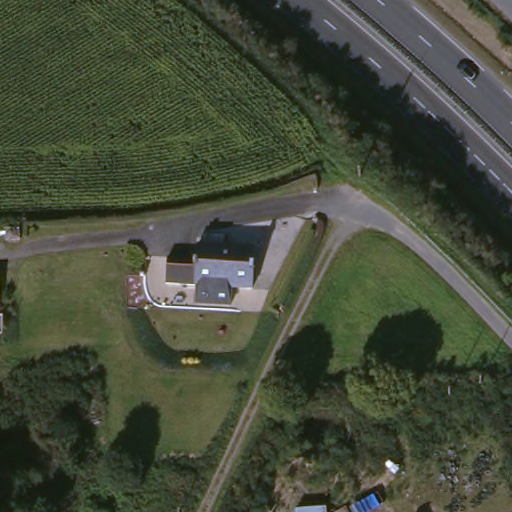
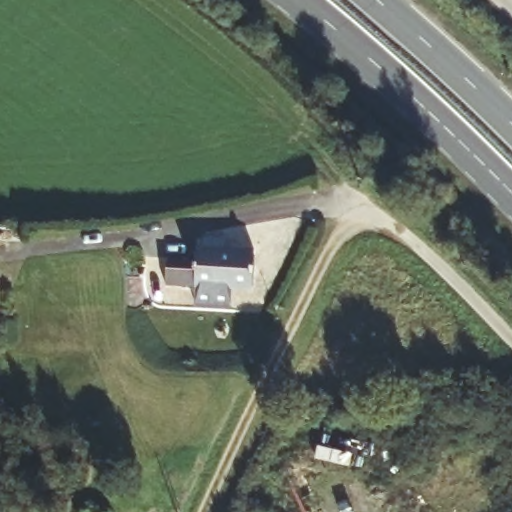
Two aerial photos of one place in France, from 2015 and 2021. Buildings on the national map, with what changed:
unchanged [(160,264),(188,266),(188,251),(197,250),(199,243),(206,243),(208,237),(233,238),(233,252),(252,252),(247,294),(160,292),(160,264)]

